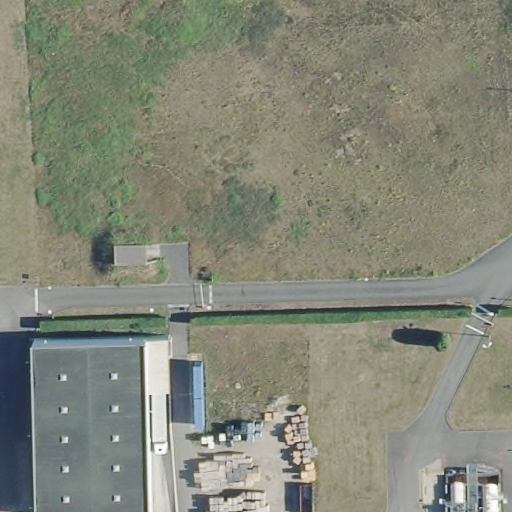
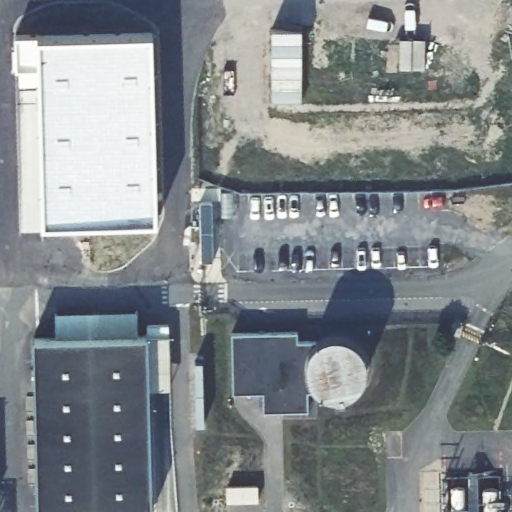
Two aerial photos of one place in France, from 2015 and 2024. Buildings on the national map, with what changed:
new [(302,30),(302,103),(271,102),(272,30),(302,30)]
new [(40,65),(18,66),(17,32),(38,32),(153,31),(158,217),(43,221),(40,65)]
unchanged [(33,337),(59,337),(57,313),(142,310),(142,334),(170,333),(173,387),(152,388),(152,456),(153,510),(72,512),(39,512),(33,337)]
new [(233,332),(298,331),(298,341),(318,341),(313,345),(310,351),(307,357),(306,363),(307,372),(310,380),(316,388),(323,392),(311,393),(312,412),(267,414),(266,395),(235,396),(233,332)]
unchanged [(202,357),(203,419),(195,419),(193,357),(202,357)]

